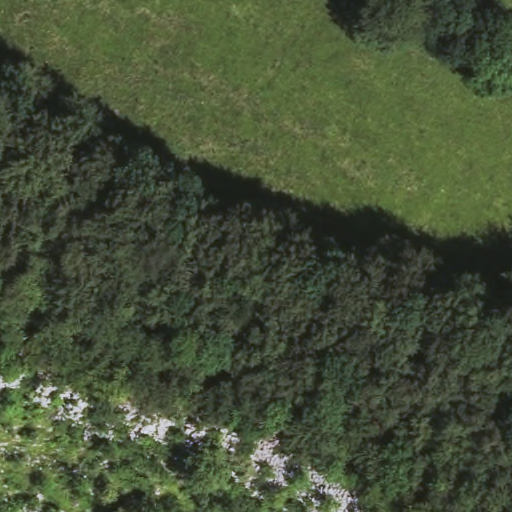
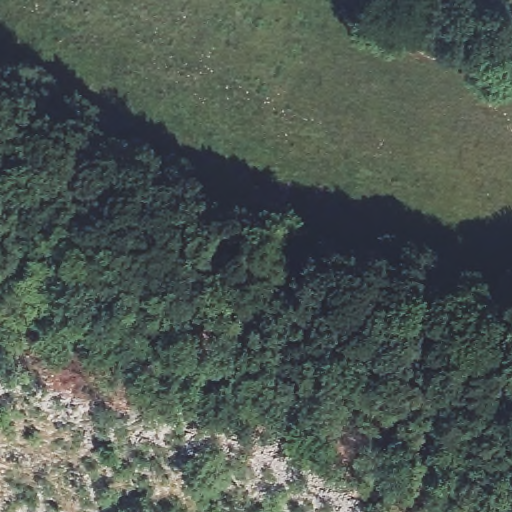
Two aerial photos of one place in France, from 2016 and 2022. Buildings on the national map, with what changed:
unchanged [(435,47),(389,22),(404,0),(417,0),(452,17),(435,47)]

